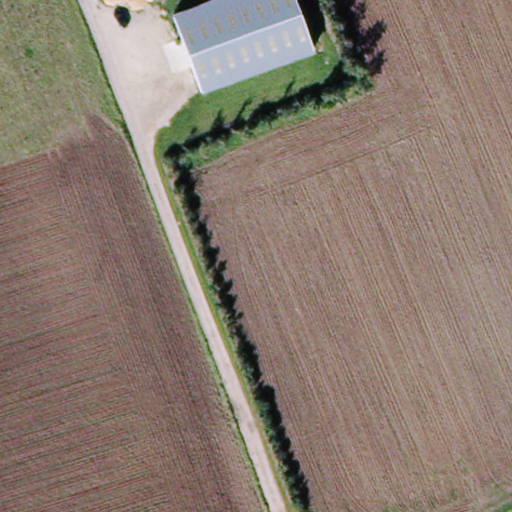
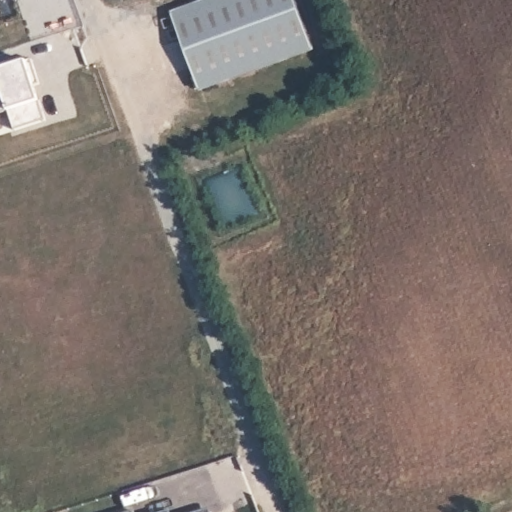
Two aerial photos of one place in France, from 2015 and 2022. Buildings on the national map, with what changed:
unchanged [(177,12),(210,0),(301,0),(317,47),(205,88),(177,12)]
new [(0,6),(0,2),(1,5),(0,6)]
new [(46,120),(14,130),(9,111),(0,114),(0,70),(28,61),(39,98),(46,120)]

